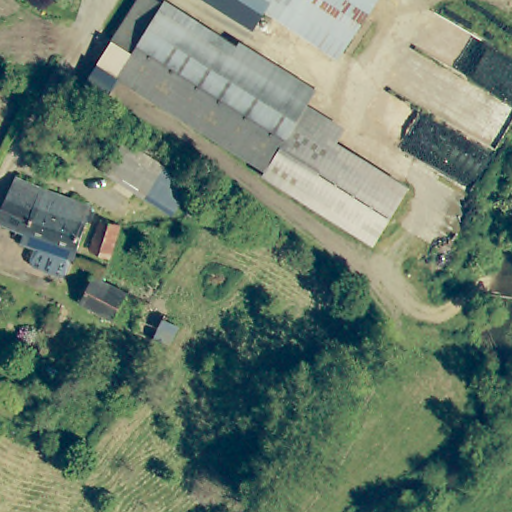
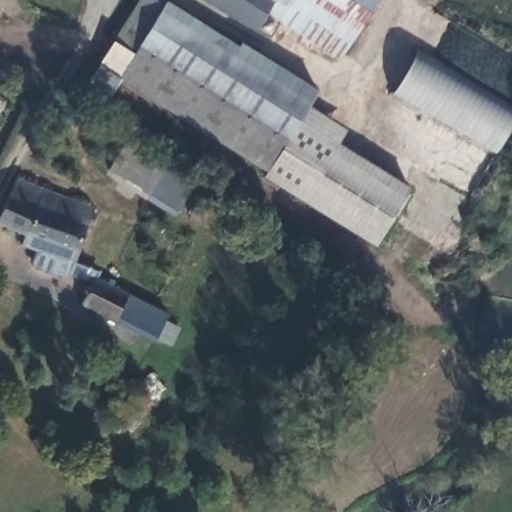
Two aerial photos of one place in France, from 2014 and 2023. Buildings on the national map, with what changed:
unchanged [(266,166),(114,74),(95,62),(104,44),(130,0),(150,0),(156,3),(158,0),(163,0),(183,11),(156,57),(286,133),(266,166)]
unchanged [(266,9),(256,26),(212,0),(272,0),(266,9)]
unchanged [(266,9),(272,0),(373,0),(356,31),(343,54),(281,18),(266,9)]
unchanged [(256,53),(313,86),(307,97),(305,101),(303,103),(286,133),(156,57),(183,11),(256,53)]
new [(494,152),(387,93),(411,50),(512,107),(512,124),(494,152)]
unchanged [(345,128),(336,140),(410,186),(374,245),(261,175),(266,166),(286,133),(303,103),(345,128)]
unchanged [(143,202),(105,178),(121,153),(159,178),(143,202)]
unchanged [(61,274),(34,262),(32,257),(37,245),(21,238),(25,228),(4,219),(22,176),(95,207),(72,260),(71,259),(66,271),(61,274)]
unchanged [(189,198),(172,222),(143,202),(159,178),(189,198)]
unchanged [(147,310),(159,315),(152,329),(136,322),(134,327),(60,291),(72,266),(97,278),(139,299),(150,304),(147,310)]

